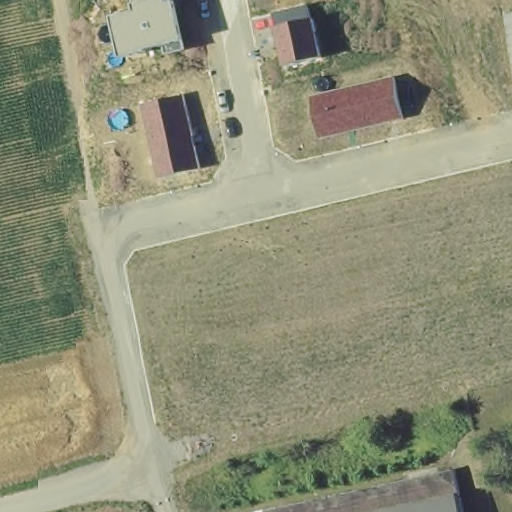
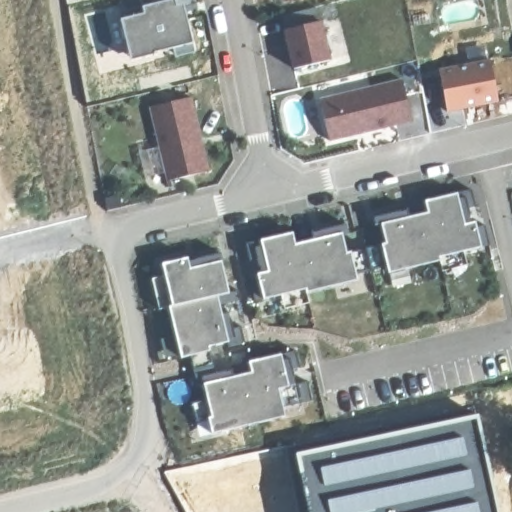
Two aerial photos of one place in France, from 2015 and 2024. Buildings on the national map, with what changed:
unchanged [(175,57),(174,50),(132,60),(122,20),(146,14),(144,7),(142,0),(176,0),(177,7),(184,4),(194,43),(195,52),(175,57)]
unchanged [(284,2),(283,0),(290,0),(284,2)]
unchanged [(318,21),(323,20),(333,60),(294,68),(286,31),(282,15),(315,8),(318,21)]
unchanged [(439,66),(490,57),(498,99),(447,109),(439,66)]
unchanged [(403,80),(412,121),(329,141),(319,99),(403,80)]
unchanged [(150,107),(191,97),(208,172),(167,181),(150,107)]
new [(483,251),(467,255),(470,266),(442,273),(439,262),(388,275),(380,245),(388,244),(383,224),(394,222),(391,207),(409,204),(412,218),(428,215),(425,201),(457,194),(459,203),(472,200),(476,223),(483,251)]
new [(346,254),(352,252),(359,283),(308,295),(311,303),(284,310),(281,297),(262,302),(256,275),(268,273),(260,240),(293,234),(295,244),(343,234),(346,254)]
new [(230,292),(216,297),(227,342),(208,347),(209,351),(213,367),(194,372),(190,355),(181,357),(170,308),(158,311),(151,278),(164,275),(160,262),(190,255),(193,266),(224,258),(230,292)]
new [(253,373),(250,363),(280,357),(288,388),(298,385),(302,402),(283,407),(285,418),(214,435),(210,418),(197,421),(193,403),(206,401),(203,386),(253,373)]
new [(484,512),(328,512),(312,452),(458,412),(484,512)]
demolished [(465,512),(272,512),(457,472),(465,512)]

